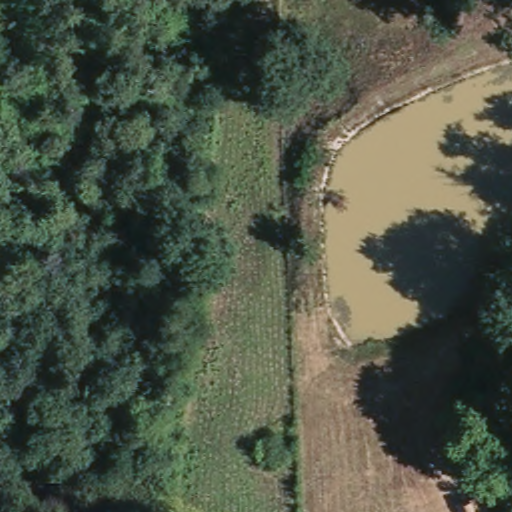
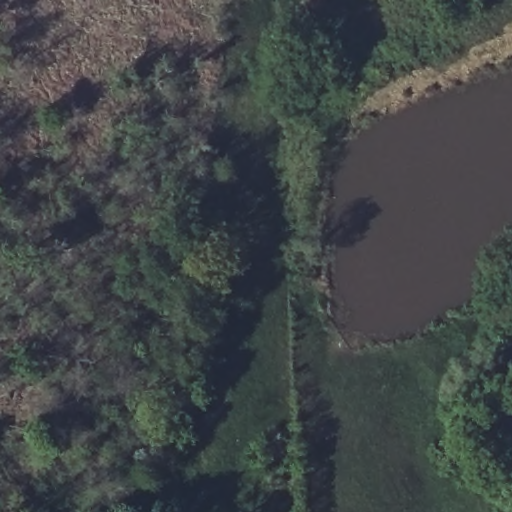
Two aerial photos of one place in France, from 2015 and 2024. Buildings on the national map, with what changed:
[]

